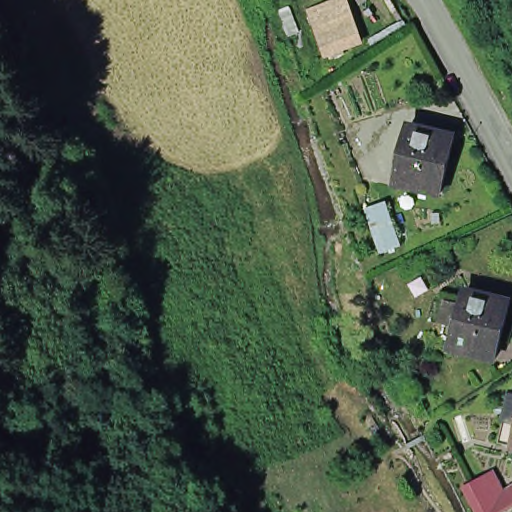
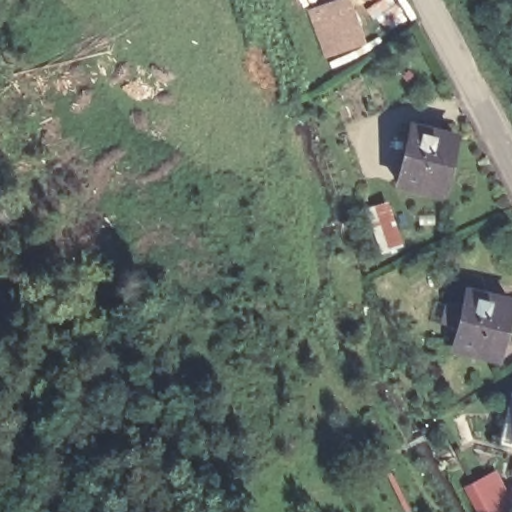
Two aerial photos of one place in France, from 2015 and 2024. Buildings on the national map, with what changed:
unchanged [(342,1),(359,47),(320,62),(301,18),(342,1)]
unchanged [(450,138),(437,194),(391,183),(405,127),(450,138)]
unchanged [(402,247),(379,254),(363,209),(387,201),(402,247)]
unchanged [(511,298),(496,355),(453,345),(468,288),(511,298)]
unchanged [(512,396),(512,447),(500,444),(512,396)]
unchanged [(470,490),(490,478),(501,497),(512,491),(512,507),(503,512),(483,512),(470,490)]

